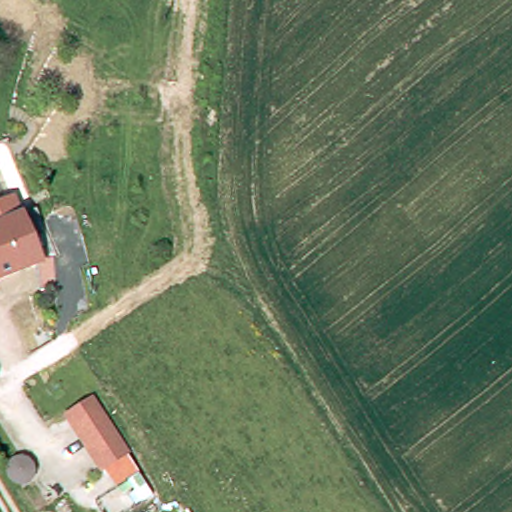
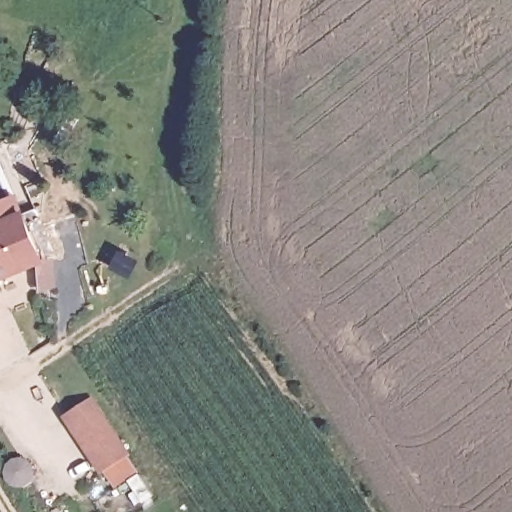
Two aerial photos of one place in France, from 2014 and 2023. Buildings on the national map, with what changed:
unchanged [(20,206),(39,198),(59,246),(40,254),(20,206)]
unchanged [(0,273),(0,215),(20,206),(40,254),(0,273)]
unchanged [(62,409),(88,391),(127,450),(101,467),(62,409)]

